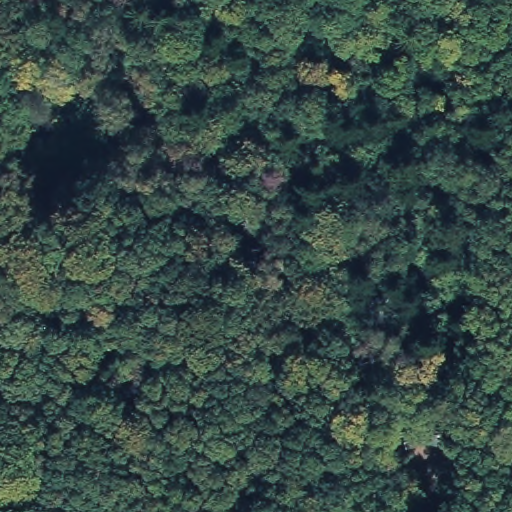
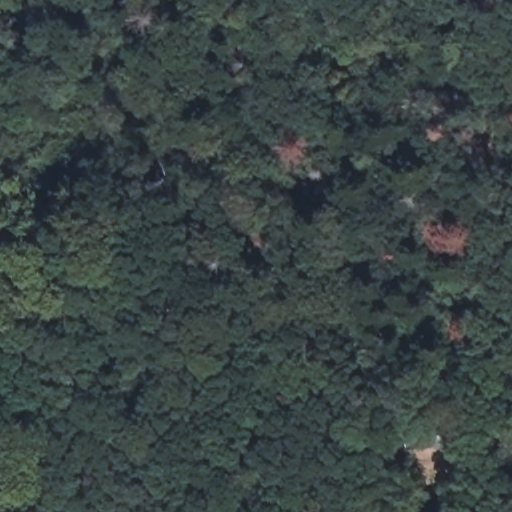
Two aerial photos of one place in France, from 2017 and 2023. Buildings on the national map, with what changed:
unchanged [(425,425),(431,417),(441,422),(443,432),(437,440),(425,437),(404,442),(402,429),(425,425)]

